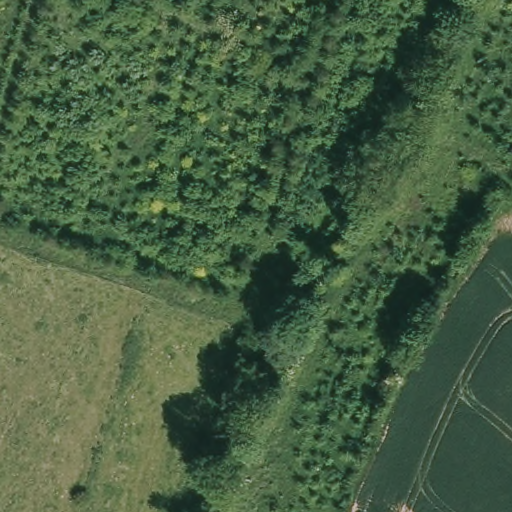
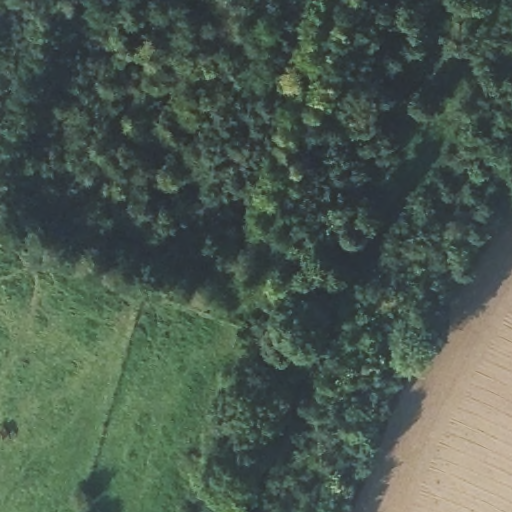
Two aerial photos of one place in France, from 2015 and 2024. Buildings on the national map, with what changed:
[]

